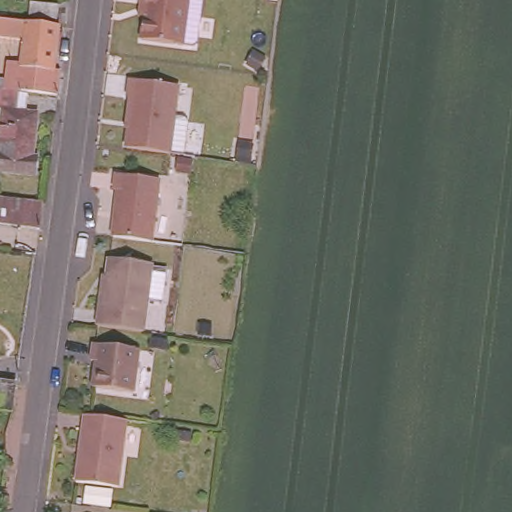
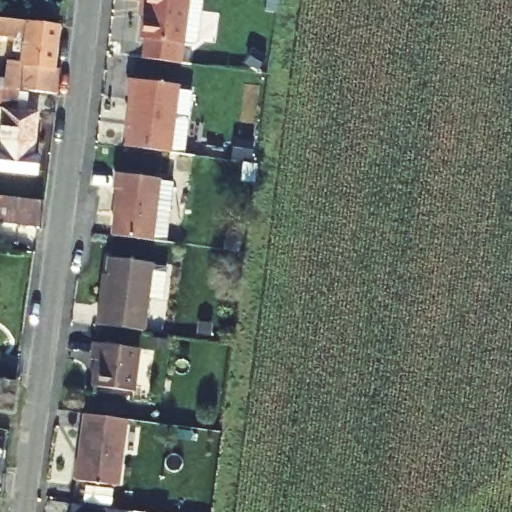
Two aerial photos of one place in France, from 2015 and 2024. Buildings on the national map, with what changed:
unchanged [(8,90),(15,39),(0,37),(0,18),(17,21),(20,0),(27,0),(50,3),(48,25),(49,25),(43,71),(50,72),(49,79),(48,95),(8,90)]
unchanged [(143,37),(147,1),(139,0),(189,0),(183,42),(143,37)]
unchanged [(126,145),(132,95),(127,95),(128,77),(178,82),(170,149),(126,145)]
unchanged [(23,154),(20,173),(0,171),(0,88),(4,89),(3,107),(25,111),(20,154),(23,154)]
unchanged [(112,235),(118,183),(114,182),(116,166),(158,171),(151,239),(112,235)]
unchanged [(43,204),(40,221),(0,216),(0,203),(14,205),(14,201),(43,204)]
unchanged [(96,322),(98,304),(101,304),(106,255),(151,260),(145,327),(96,322)]
unchanged [(93,383),(96,357),(91,357),(93,340),(139,346),(134,388),(93,383)]
unchanged [(18,382),(15,400),(0,398),(2,381),(18,382)]
unchanged [(78,479),(85,412),(128,417),(121,484),(78,479)]

